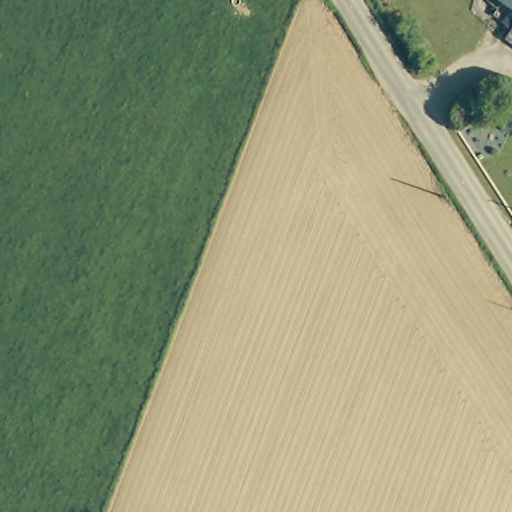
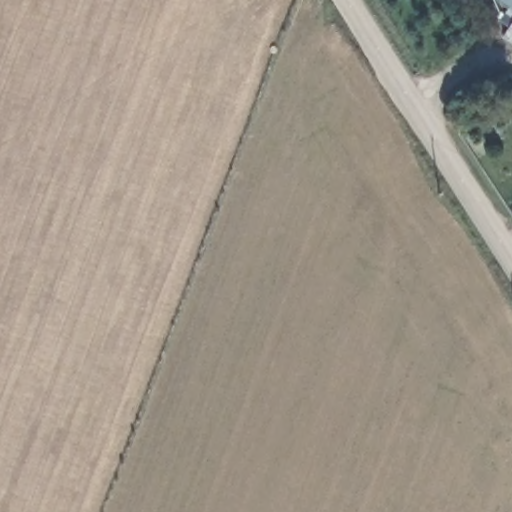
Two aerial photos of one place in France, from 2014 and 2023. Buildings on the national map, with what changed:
unchanged [(512,23),(512,30),(508,28),(512,23)]

